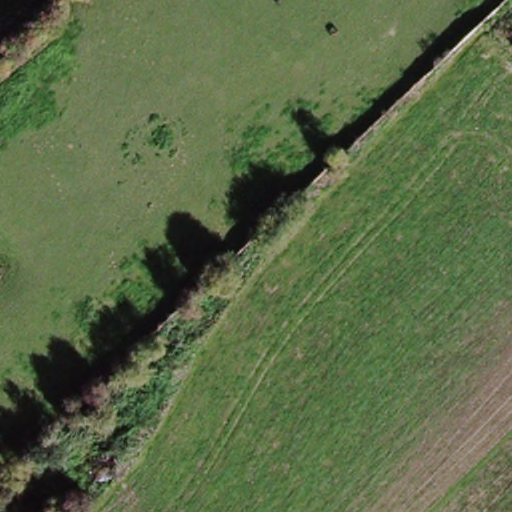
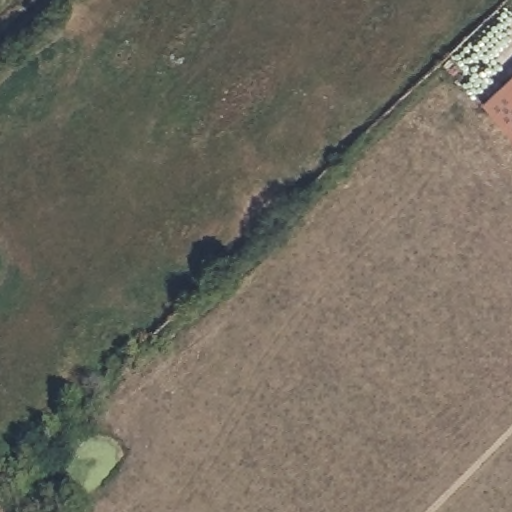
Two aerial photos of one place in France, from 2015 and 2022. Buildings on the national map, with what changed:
new [(512,73),(512,134),(481,101),(512,73)]

